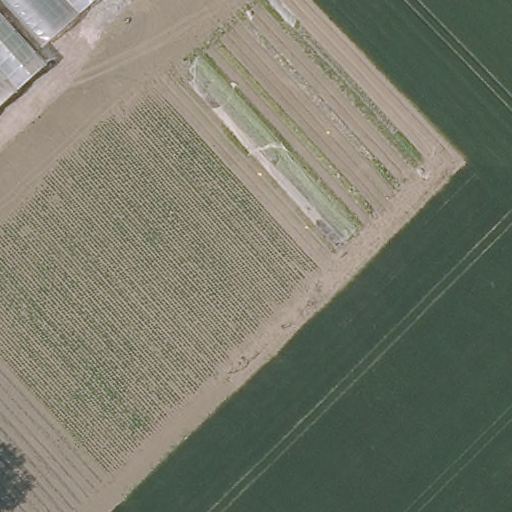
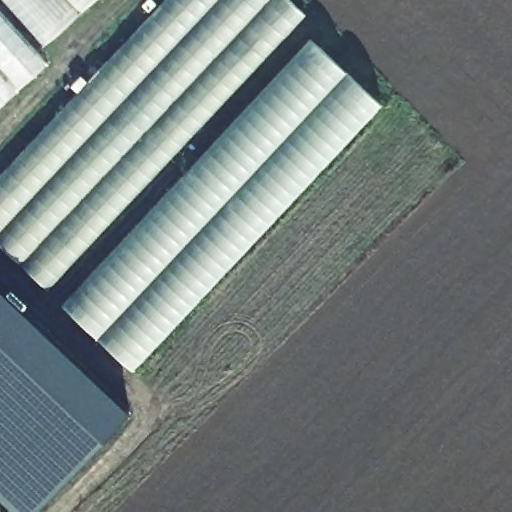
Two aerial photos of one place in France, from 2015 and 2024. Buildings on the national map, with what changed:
unchanged [(96,0),(42,46),(0,0),(96,0)]
new [(164,0),(289,0),(307,16),(49,289),(0,244),(0,174),(164,0)]
unchanged [(48,64),(0,107),(0,12),(48,64)]
new [(312,41),(380,108),(134,374),(63,304),(312,41)]
new [(0,497),(0,287),(129,410),(32,512),(16,512),(0,497)]

